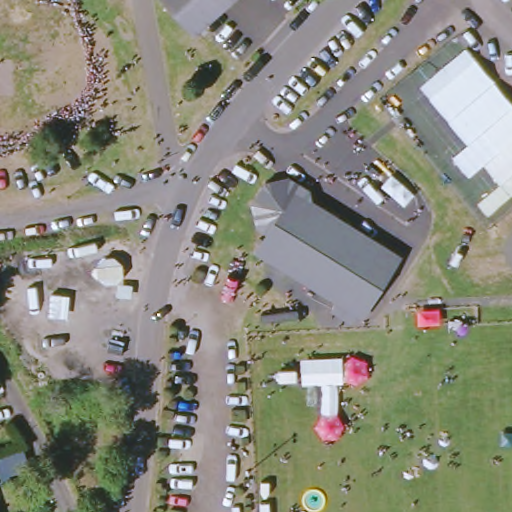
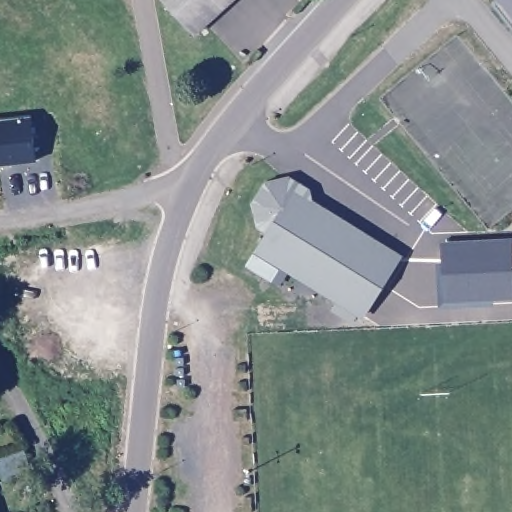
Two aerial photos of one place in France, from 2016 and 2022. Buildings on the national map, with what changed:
unchanged [(163,0),(230,0),(191,34),(163,0)]
new [(495,0),(512,0),(512,27),(493,3),(495,0)]
new [(28,115),(31,161),(0,165),(0,118),(28,115)]
unchanged [(361,318),(258,252),(296,194),(399,259),(361,318)]
new [(512,240),(512,298),(444,301),(442,242),(512,240)]
new [(18,450),(24,469),(0,477),(0,456),(18,450)]

